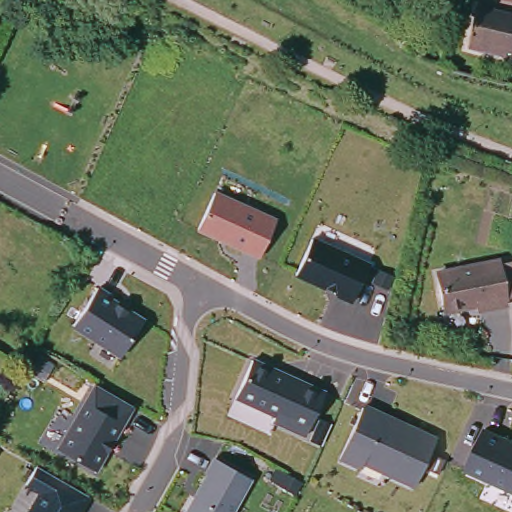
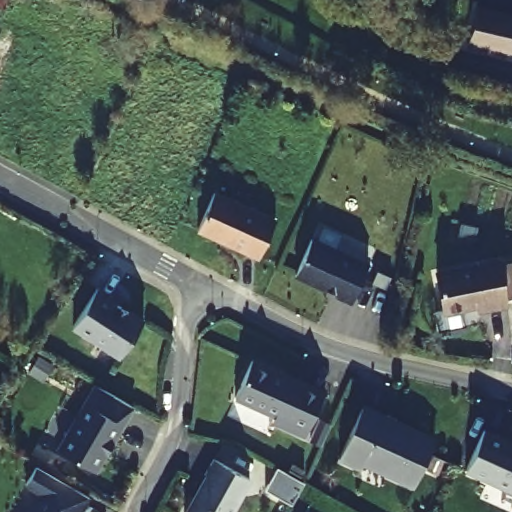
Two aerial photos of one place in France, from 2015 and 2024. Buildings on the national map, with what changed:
unchanged [(512,13),(512,51),(469,41),(478,6),(512,13)]
unchanged [(276,218),(259,259),(196,232),(214,190),(276,218)]
unchanged [(371,261),(353,301),(293,274),(313,234),(371,261)]
unchanged [(469,306),(468,300),(435,308),(428,272),(488,259),(489,262),(504,259),(510,291),(494,294),(496,301),(469,306)]
unchanged [(73,323),(97,285),(112,294),(110,298),(143,319),(121,354),(73,323)]
unchanged [(306,436),(274,421),(277,416),(236,397),(253,360),(326,393),(306,436)]
unchanged [(55,445),(88,389),(93,381),(130,402),(91,467),(55,445)]
unchanged [(438,434),(414,486),(363,463),(360,470),(339,459),(363,403),(438,434)]
unchanged [(512,492),(466,470),(485,426),(512,437),(512,492)]
unchanged [(253,480),(235,512),(183,512),(212,458),(253,480)]
unchanged [(90,498),(82,512),(27,512),(37,494),(24,487),(36,467),(90,498)]

